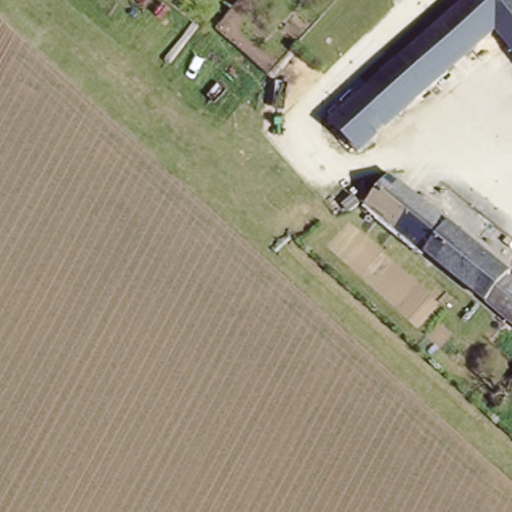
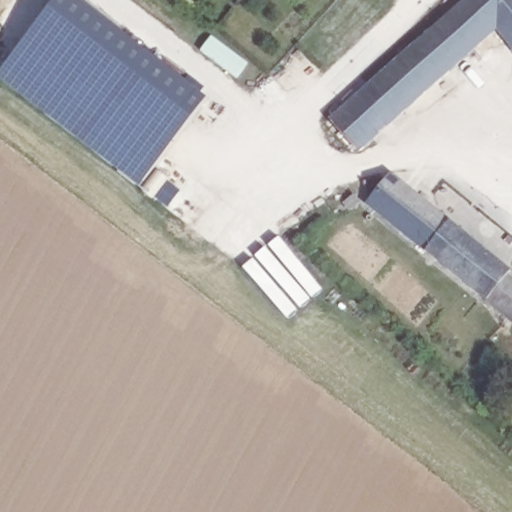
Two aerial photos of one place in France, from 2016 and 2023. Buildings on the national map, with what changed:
new [(138,189),(0,80),(0,72),(59,0),(76,0),(208,100),(138,189)]
unchanged [(334,121),(467,0),(512,0),(512,44),(500,30),(364,154),(334,121)]
unchanged [(509,275),(487,301),(368,204),(391,171),(512,270),(509,275)]
unchanged [(359,204),(350,211),(343,202),(353,195),(359,204)]
unchanged [(509,275),(512,277),(512,321),(487,301),(509,275)]

